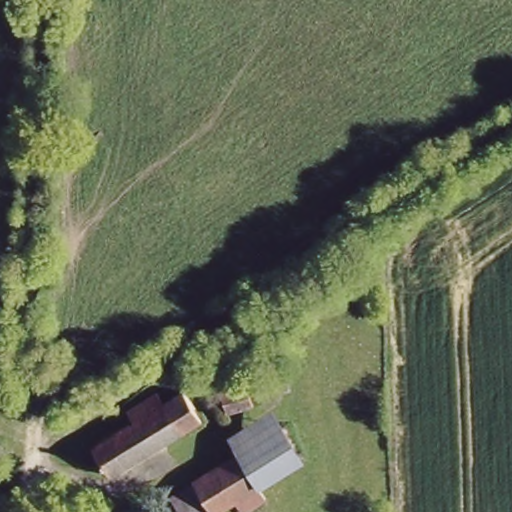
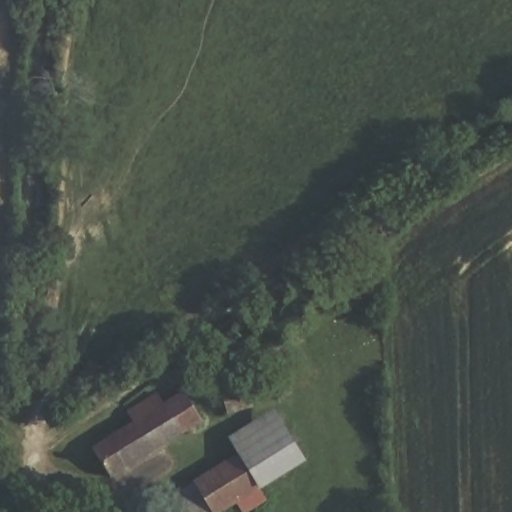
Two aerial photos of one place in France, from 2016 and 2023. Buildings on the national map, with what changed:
unchanged [(255,389),(263,406),(237,417),(229,399),(255,389)]
unchanged [(87,448),(130,422),(122,407),(151,390),(162,401),(182,392),(199,420),(108,480),(87,448)]
unchanged [(220,439),(271,409),(302,461),(258,487),(267,502),(250,512),(241,512),(237,505),(224,512),(176,512),(169,495),(230,452),(220,439)]

